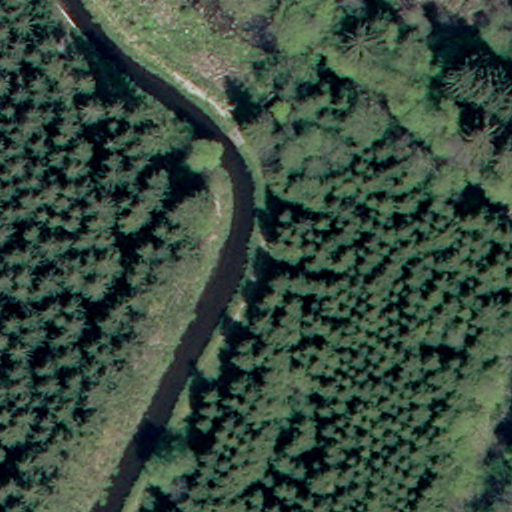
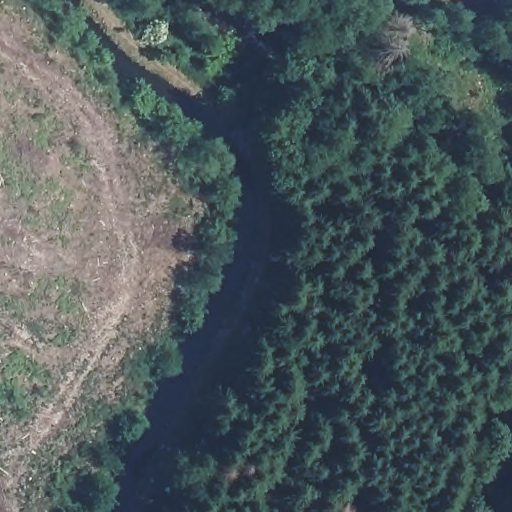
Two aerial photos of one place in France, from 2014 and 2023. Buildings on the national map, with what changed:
[]

